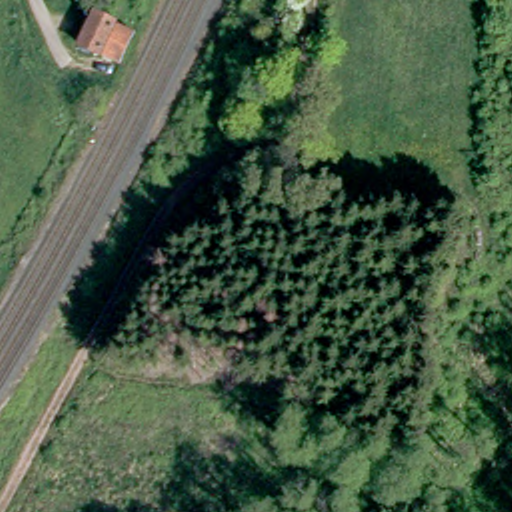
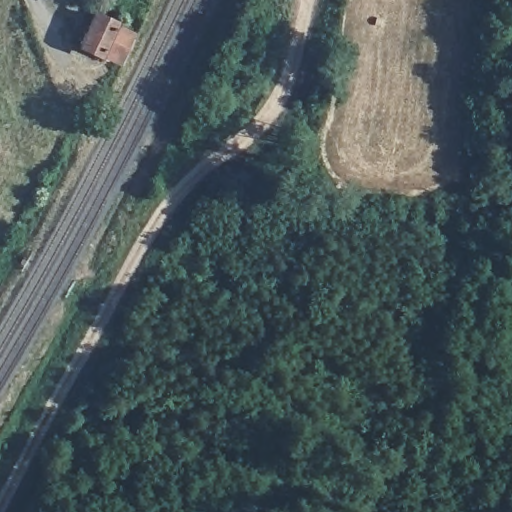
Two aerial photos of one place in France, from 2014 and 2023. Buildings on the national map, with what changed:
unchanged [(125,60),(113,54),(105,50),(102,54),(84,45),(100,15),(117,25),(115,29),(122,32),(135,39),(125,60)]

